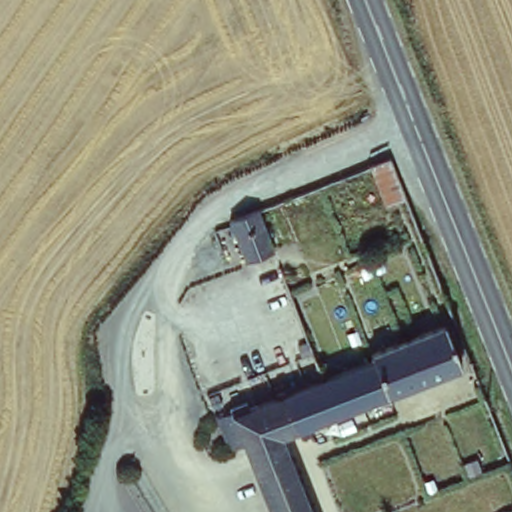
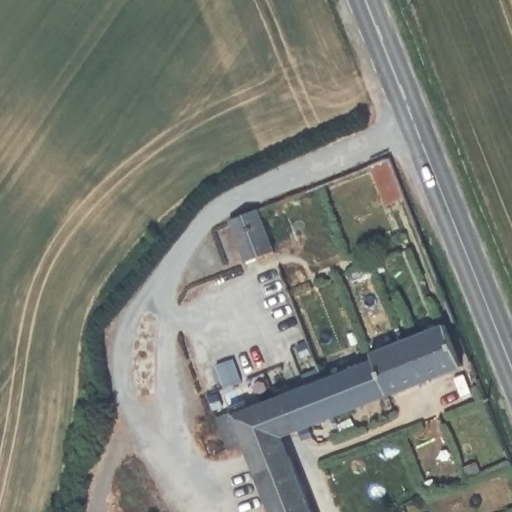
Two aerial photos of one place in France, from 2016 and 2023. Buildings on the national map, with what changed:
unchanged [(407,189),(387,197),(372,162),(392,154),(407,189)]
unchanged [(246,210),(263,255),(235,268),(217,221),(246,210)]
unchanged [(470,367),(293,427),(252,443),(248,431),(235,437),(224,409),(240,403),(237,398),(253,393),(256,401),(332,374),(382,356),(380,347),(455,319),(470,367)]
unchanged [(252,443),(293,427),(304,456),(261,471),(252,443)]
unchanged [(261,471),(304,456),(324,512),(275,512),(261,471)]

